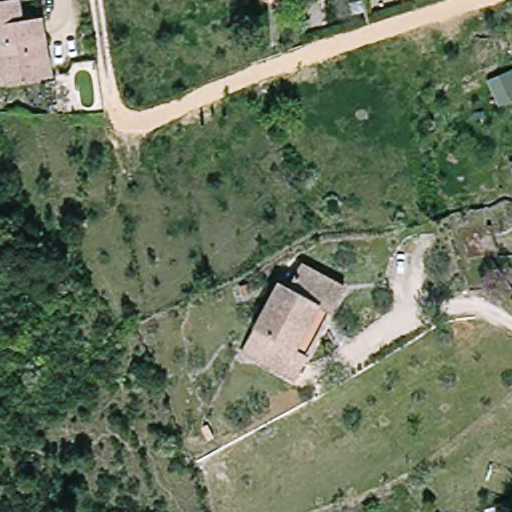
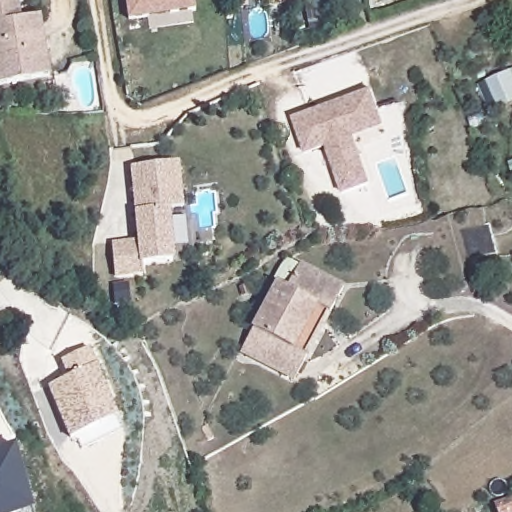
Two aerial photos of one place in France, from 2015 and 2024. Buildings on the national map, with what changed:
unchanged [(57,75),(50,76),(0,85),(0,2),(11,0),(21,0),(24,27),(49,22),(57,75)]
new [(123,18),(121,0),(189,0),(190,12),(163,14),(142,16),(123,18)]
unchanged [(512,74),(512,102),(497,107),(488,82),(510,74),(512,74)]
demolished [(453,90),(475,82),(485,107),(462,115),(453,90)]
new [(378,107),(383,121),(353,132),(371,179),(344,188),(326,141),(305,149),(292,114),(370,85),(378,107)]
new [(132,233),(130,158),(176,157),(178,201),(165,201),(167,254),(133,255),(134,265),(107,266),(105,234),(132,233)]
unchanged [(300,381),(245,354),(276,287),(287,292),(301,261),(347,284),(334,312),(311,358),(300,381)]
new [(48,386),(68,376),(61,361),(90,348),(119,415),(70,438),(48,386)]
new [(15,446),(35,509),(25,512),(0,512),(0,450),(15,446)]
unchanged [(502,495),(512,493),(512,509),(506,510),(502,495)]

